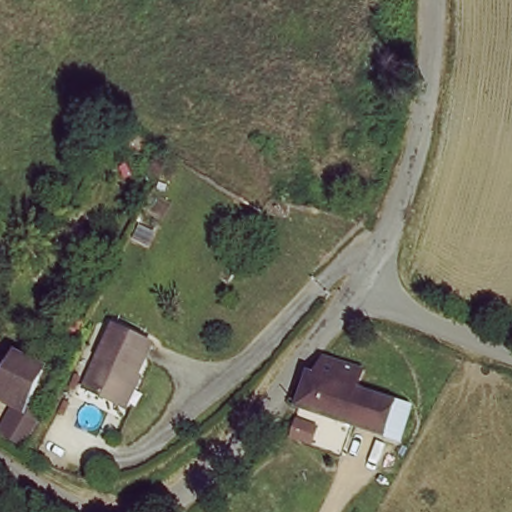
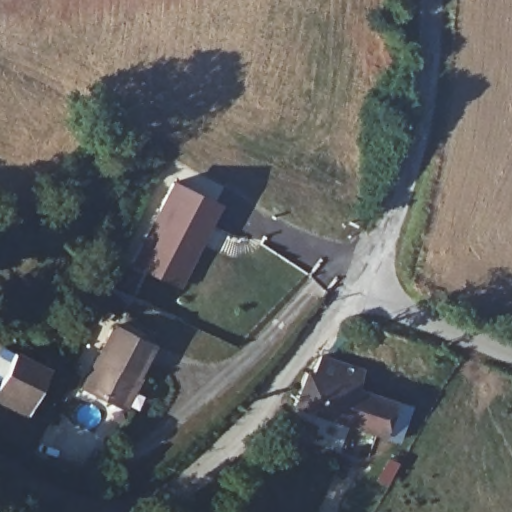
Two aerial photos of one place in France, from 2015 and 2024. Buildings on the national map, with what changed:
new [(178,287),(131,262),(170,180),(218,202),(178,287)]
unchanged [(136,381),(130,377),(113,405),(80,387),(115,329),(153,351),(136,381)]
unchanged [(320,357),(362,371),(352,395),(311,380),(320,357)]
unchanged [(49,381),(27,413),(0,396),(0,377),(12,358),(49,381)]
unchanged [(352,395),(396,410),(387,439),(295,408),(306,378),(311,380),(352,395)]

